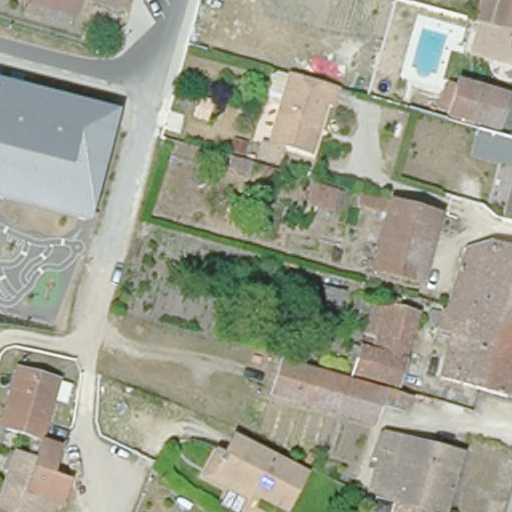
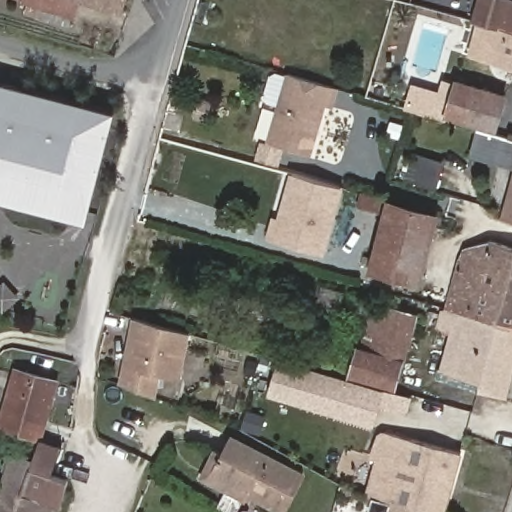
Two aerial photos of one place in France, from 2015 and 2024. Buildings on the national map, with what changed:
unchanged [(68,16),(66,23),(24,10),(27,0),(120,0),(117,10),(106,6),(99,26),(68,16)]
unchanged [(492,24),(472,18),(478,0),(512,0),(512,30),(492,24)]
unchanged [(474,53),(478,40),(486,41),(492,24),(512,30),(512,65),(474,53)]
unchanged [(321,140),(314,138),(308,158),(265,147),(276,107),(260,103),(269,72),(285,76),(334,91),(321,140)]
unchanged [(503,94),(491,127),(445,113),(456,80),(503,94)]
unchanged [(0,201),(0,81),(117,111),(86,224),(0,201)]
new [(424,150),(445,167),(427,191),(405,174),(424,150)]
unchanged [(493,187),(500,162),(512,165),(512,193),(493,187)]
new [(325,255),(266,239),(272,216),(277,217),(290,173),(344,188),(325,255)]
unchanged [(376,243),(384,213),(357,204),(360,193),(436,215),(419,283),(370,271),(376,243)]
unchanged [(488,241),(512,247),(512,328),(443,308),(462,246),(488,241)]
unchanged [(337,317),(303,308),(306,301),(294,298),(299,282),(268,273),(275,257),(314,269),(310,282),(344,290),(337,317)]
unchanged [(349,372),(357,345),(360,345),(371,306),(383,309),(384,305),(414,314),(391,384),(349,372)]
unchanged [(512,328),(512,370),(504,396),(437,377),(445,348),(432,343),(443,308),(512,328)]
new [(180,380),(161,376),(156,397),(119,382),(133,319),(190,333),(180,380)]
unchanged [(343,330),(336,353),(312,347),(319,324),(343,330)]
unchanged [(408,397),(403,411),(377,405),(370,423),(269,394),(279,360),(408,397)]
unchanged [(52,379),(35,440),(0,429),(0,412),(14,368),(52,379)]
unchanged [(365,493),(375,459),(369,457),(380,431),(460,452),(442,512),(436,512),(374,495),(365,493)]
unchanged [(204,476),(219,449),(228,454),(236,438),(305,475),(287,509),(254,491),(249,501),(204,476)]
unchanged [(13,456),(31,462),(39,441),(58,448),(49,475),(66,481),(59,505),(59,506),(54,505),(51,512),(0,512),(0,495),(1,490),(13,456)]
unchanged [(436,512),(370,512),(374,495),(436,512)]

